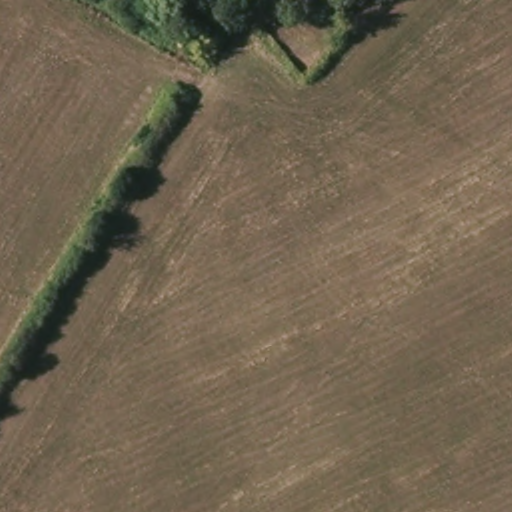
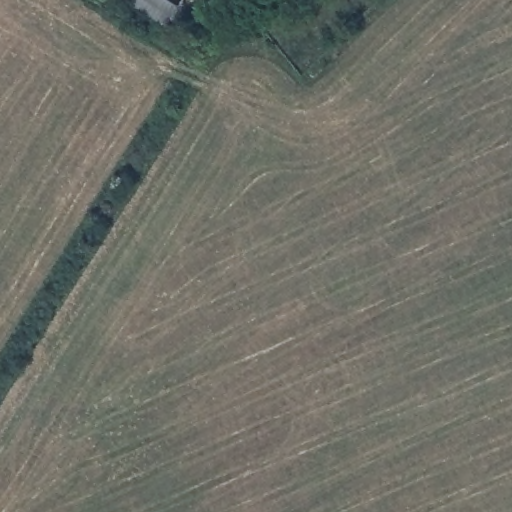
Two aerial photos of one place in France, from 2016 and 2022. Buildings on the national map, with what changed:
unchanged [(162,1),(205,27),(212,22),(224,27),(210,49),(153,20),(162,1)]

